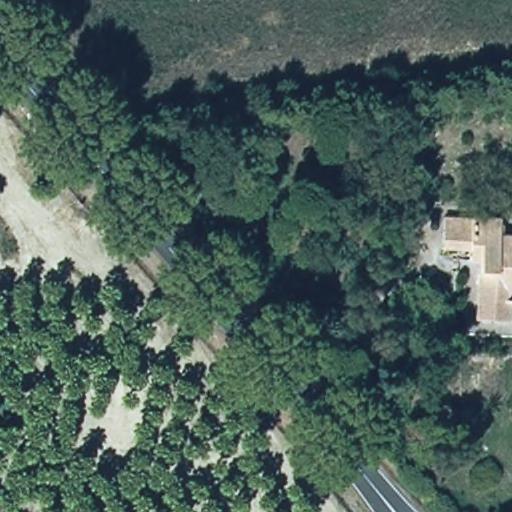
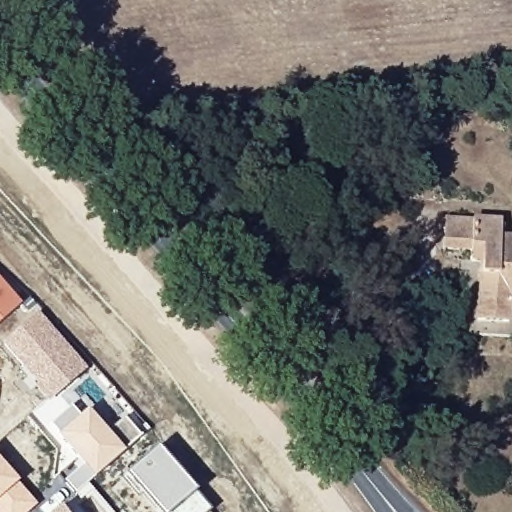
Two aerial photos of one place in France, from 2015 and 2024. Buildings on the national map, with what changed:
unchanged [(494,235),(512,237),(512,297),(505,296),(503,320),(473,318),(477,261),(464,260),(464,250),(437,247),(440,217),(495,221),(494,235)]
new [(0,321),(0,284),(18,305),(0,321)]
new [(77,371),(45,399),(1,348),(33,319),(77,371)]
new [(85,409),(106,432),(123,417),(140,436),(75,495),(62,479),(77,464),(54,436),(85,409)]
new [(208,512),(155,512),(123,477),(155,448),(194,493),(210,511),(208,512)]
new [(36,505),(28,512),(0,512),(0,464),(36,505)]
new [(56,509),(59,512),(53,512),(56,509)]

